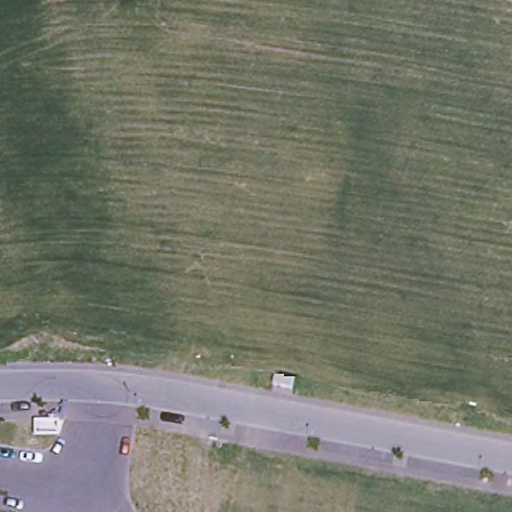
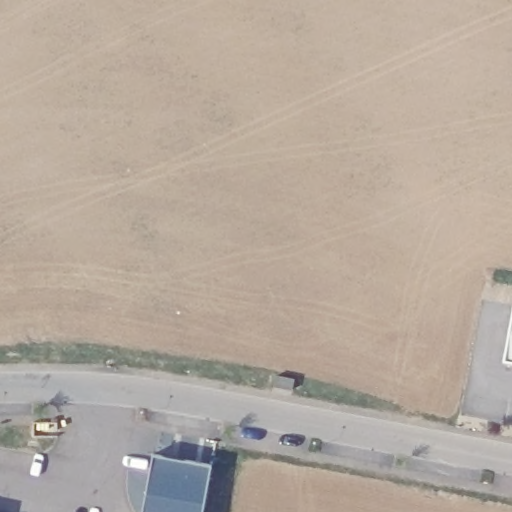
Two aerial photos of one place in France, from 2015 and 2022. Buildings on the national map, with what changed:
unchanged [(512,315),(512,361),(504,360),(512,315)]
new [(295,379),(293,390),(275,386),(277,375),(295,379)]
new [(144,512),(154,454),(212,465),(203,512),(144,512)]

